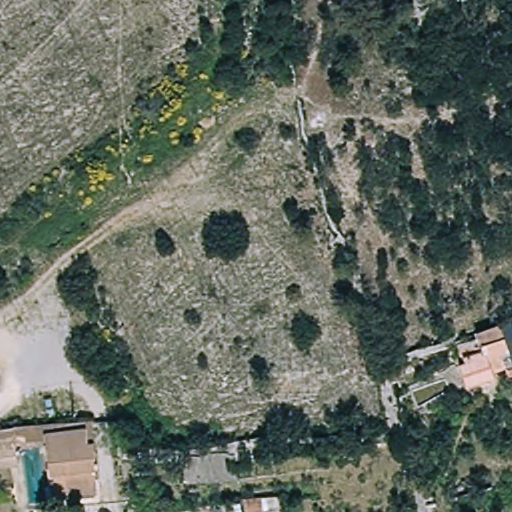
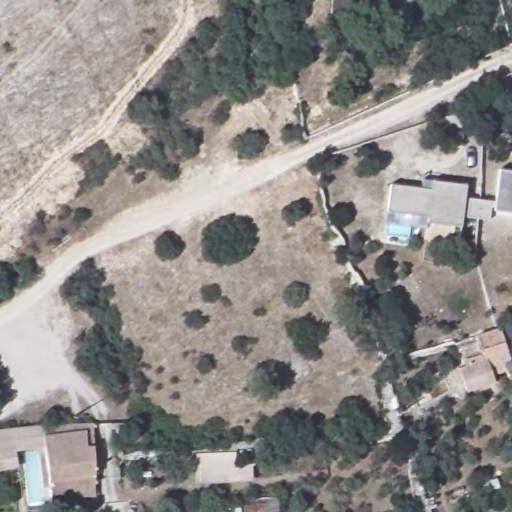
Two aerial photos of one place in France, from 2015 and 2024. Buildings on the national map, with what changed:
new [(498,170),(512,171),(512,213),(493,210),(498,170)]
new [(389,184),(430,190),(432,181),(465,185),(460,226),(426,222),(427,217),(385,212),(389,184)]
unchanged [(495,378),(497,383),(468,393),(457,363),(478,355),(475,346),(497,338),(495,332),(504,328),(512,326),(512,372),(509,373),(495,378)]
unchanged [(509,373),(512,372),(512,382),(509,373)]
unchanged [(97,504),(52,506),(46,446),(45,425),(90,421),(97,504)]
unchanged [(0,429),(45,425),(46,446),(0,451),(0,429)]
unchanged [(238,486),(193,491),(191,456),(232,451),(238,486)]
new [(279,512),(244,512),(243,501),(278,499),(279,512)]

